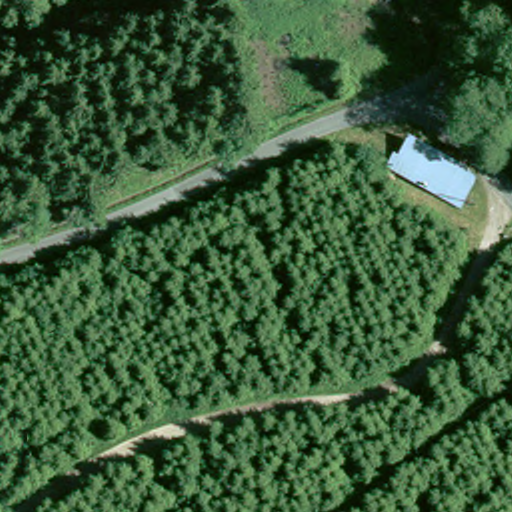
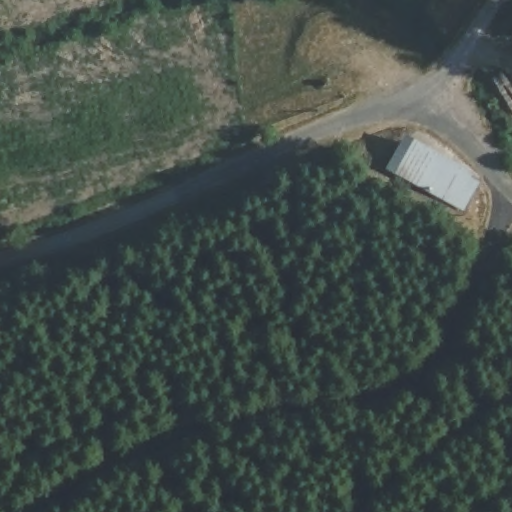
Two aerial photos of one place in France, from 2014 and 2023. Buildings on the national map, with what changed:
unchanged [(460,200),(410,176),(395,169),(402,150),(419,159),(467,184),(460,200)]

